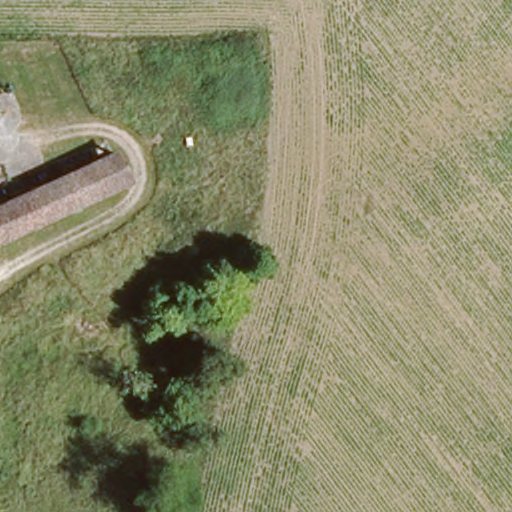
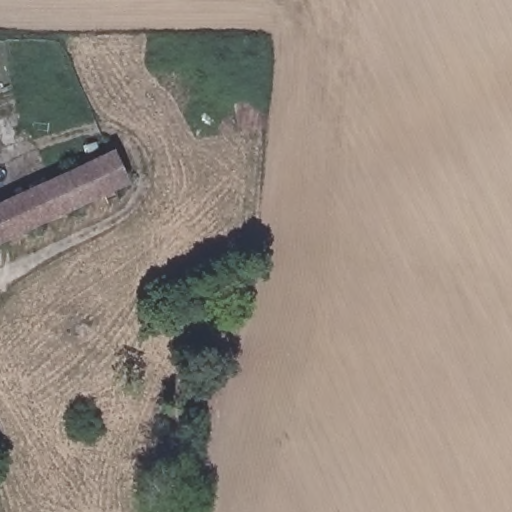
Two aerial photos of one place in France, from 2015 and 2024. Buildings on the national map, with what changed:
unchanged [(117,179),(0,238),(0,199),(102,150),(117,179)]

